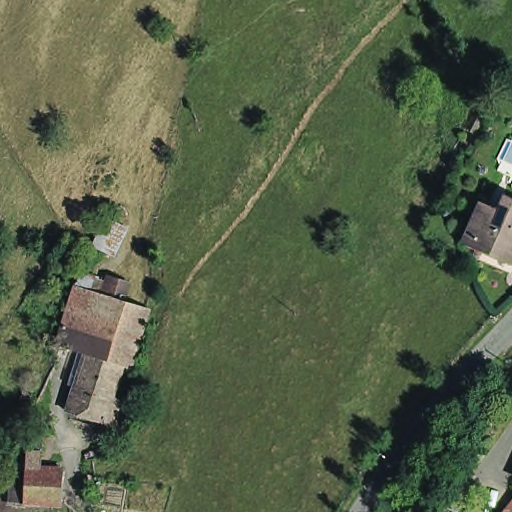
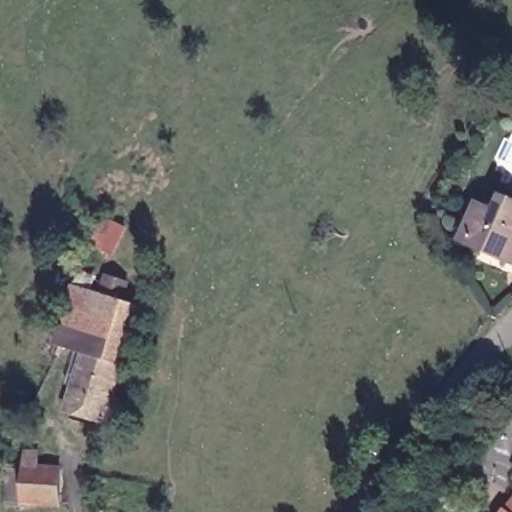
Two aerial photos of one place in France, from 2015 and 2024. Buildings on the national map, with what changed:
unchanged [(502,252),(485,244),(504,200),(512,203),(512,256),(502,252)]
unchanged [(134,361),(127,359),(90,348),(62,339),(80,281),(108,291),(114,271),(132,277),(127,296),(152,305),(134,361)]
unchanged [(127,359),(116,393),(131,398),(124,422),(72,406),(79,382),(73,380),(77,369),(82,371),(90,348),(127,359)]
unchanged [(62,468),(61,504),(25,502),(26,467),(62,468)]
unchanged [(506,512),(512,504),(512,512),(506,512)]

